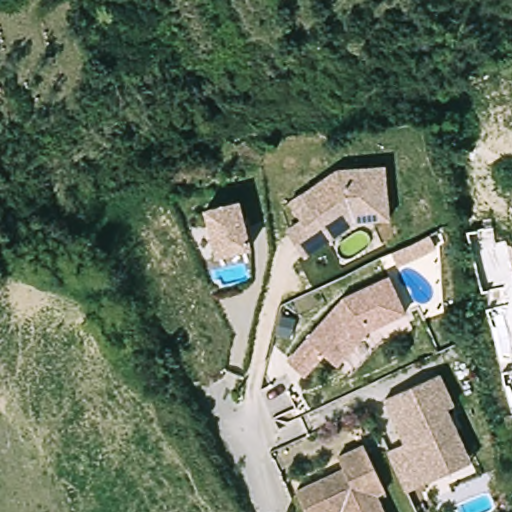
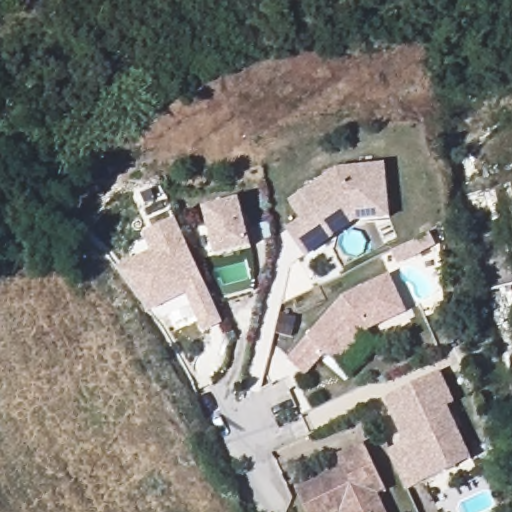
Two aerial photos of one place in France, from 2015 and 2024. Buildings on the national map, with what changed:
unchanged [(368,218),(359,206),(331,226),(323,213),(310,222),(298,203),(344,169),(392,165),(398,218),(365,220),(368,218)]
unchanged [(217,259),(205,209),(241,199),(254,247),(217,259)]
unchanged [(316,254),(299,230),(310,222),(323,213),(331,226),(359,206),(368,218),(365,220),(316,254)]
new [(186,294),(149,311),(116,268),(151,251),(143,233),(176,219),(223,323),(203,332),(186,294)]
new [(430,222),(436,234),(418,243),(400,251),(394,239),(413,230),(430,222)]
unchanged [(408,312),(371,328),(340,361),(327,350),(306,373),(289,357),(345,294),(390,275),(408,312)]
unchanged [(466,464),(415,489),(396,451),(411,442),(390,400),(444,372),(460,402),(453,406),(479,457),(466,464)]
unchanged [(351,469),(345,457),(369,445),(394,490),(386,495),(394,512),(314,512),(305,492),(351,469)]

